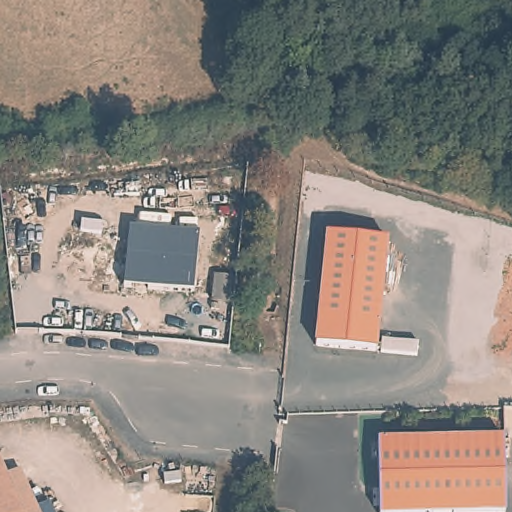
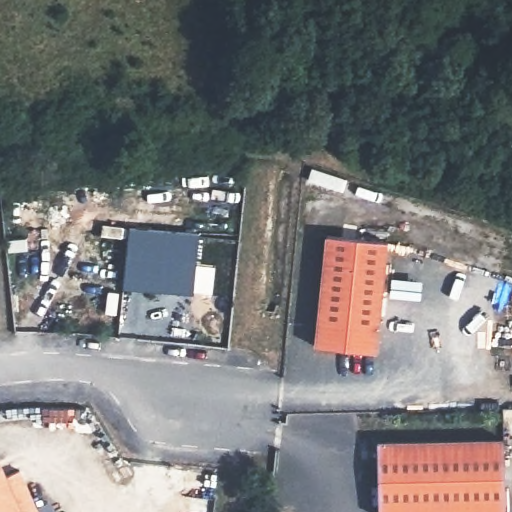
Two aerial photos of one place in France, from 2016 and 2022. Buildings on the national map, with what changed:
unchanged [(193,292),(122,286),(127,226),(196,232),(193,292)]
unchanged [(319,346),(327,235),(387,240),(379,350),(319,346)]
unchanged [(378,440),(457,437),(505,435),(507,510),(470,512),(381,512),(378,440)]
unchanged [(1,458),(9,476),(24,512),(0,512),(0,458),(1,458)]
unchanged [(23,470),(41,512),(24,512),(9,476),(23,470)]

